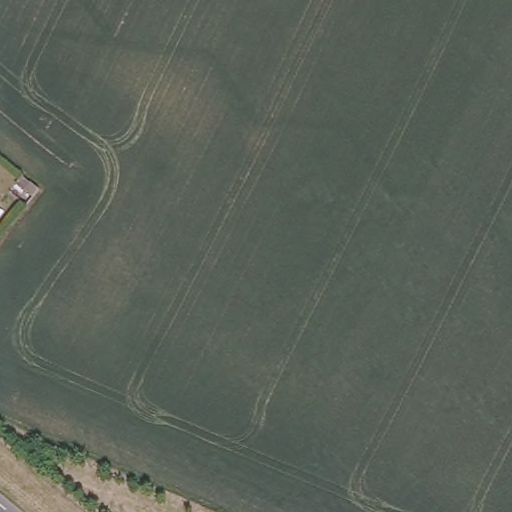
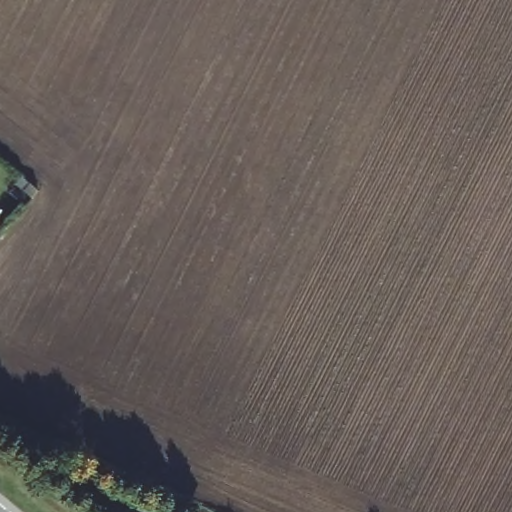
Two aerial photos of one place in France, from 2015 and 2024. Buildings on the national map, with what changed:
unchanged [(38,188),(35,192),(32,194),(31,195),(22,187),(27,179),(38,188)]

